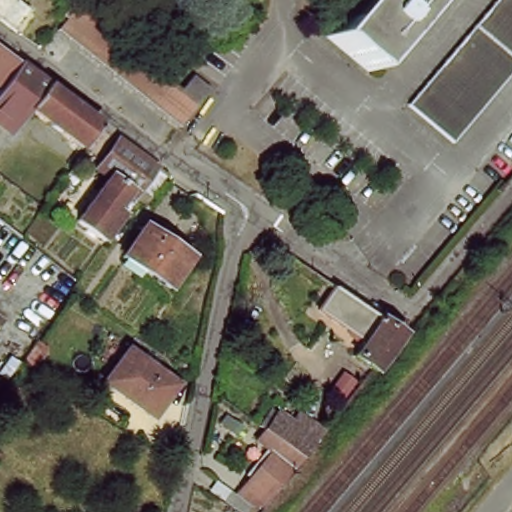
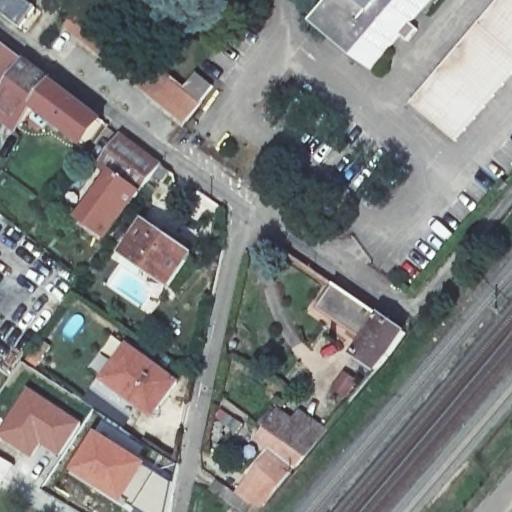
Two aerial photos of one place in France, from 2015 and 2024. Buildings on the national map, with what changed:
unchanged [(0,0),(20,0),(31,8),(15,28),(0,16),(0,0)]
unchanged [(201,99),(184,122),(63,25),(73,12),(68,8),(75,0),(78,0),(184,86),(198,71),(213,84),(201,99)]
unchanged [(359,0),(430,0),(407,27),(414,33),(404,46),(397,40),(367,74),(326,39),(359,0)]
unchanged [(502,0),(512,0),(512,77),(454,142),(411,104),(502,0)]
unchanged [(14,84),(0,72),(0,45),(28,66),(14,84)]
unchanged [(14,84),(28,66),(104,125),(85,150),(34,111),(14,136),(0,125),(0,104),(9,91),(14,84)]
unchanged [(128,196),(95,237),(75,222),(108,181),(96,171),(120,141),(158,171),(166,176),(148,200),(141,194),(136,202),(128,196)]
unchanged [(146,225),(191,256),(168,287),(124,256),(146,225)]
unchanged [(367,335),(323,305),(339,282),(406,327),(388,352),(376,366),(355,351),(367,335)]
unchanged [(53,346),(35,371),(23,359),(40,338),(53,346)]
unchanged [(130,406),(101,385),(124,352),(172,387),(153,414),(134,401),(130,406)]
unchanged [(22,387),(15,399),(4,392),(11,380),(22,387)]
unchanged [(333,397),(346,381),(359,391),(346,407),(333,397)]
new [(83,422),(59,458),(41,447),(33,460),(0,438),(0,433),(29,387),(83,422)]
unchanged [(256,499),(234,487),(266,447),(251,437),(263,422),(278,402),(291,413),(299,404),(326,425),(319,435),(305,451),(296,462),(264,499),(256,499)]
new [(97,431),(148,463),(146,467),(124,503),(123,506),(71,473),(97,431)]
new [(0,483),(0,456),(13,465),(0,483)]
new [(133,508),(124,503),(146,467),(173,482),(166,512),(131,512),(133,508)]
new [(213,477),(258,512),(257,512),(239,512),(206,487),(213,477)]

